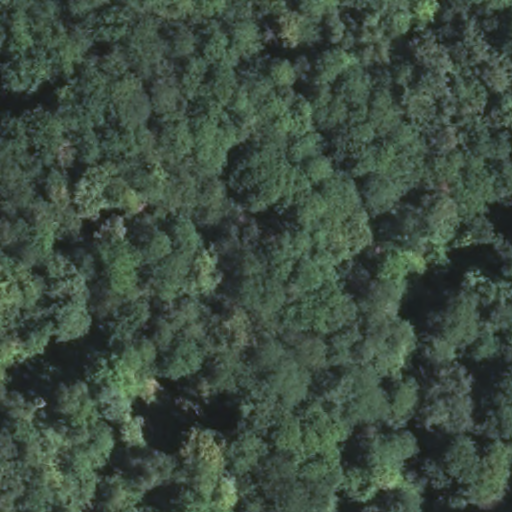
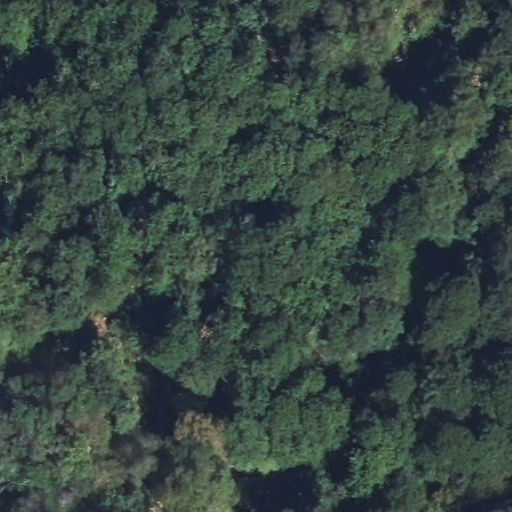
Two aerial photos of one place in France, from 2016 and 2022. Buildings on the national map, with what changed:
[]

